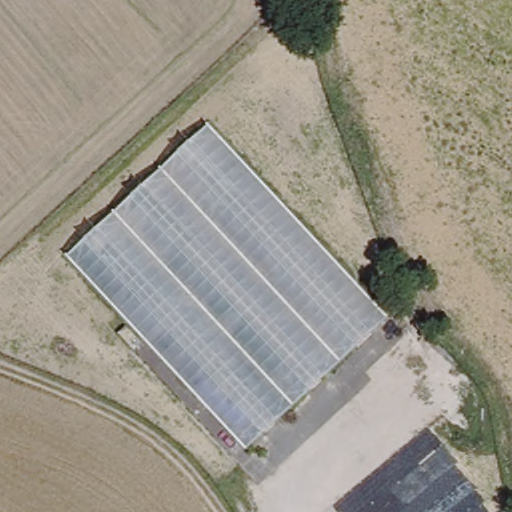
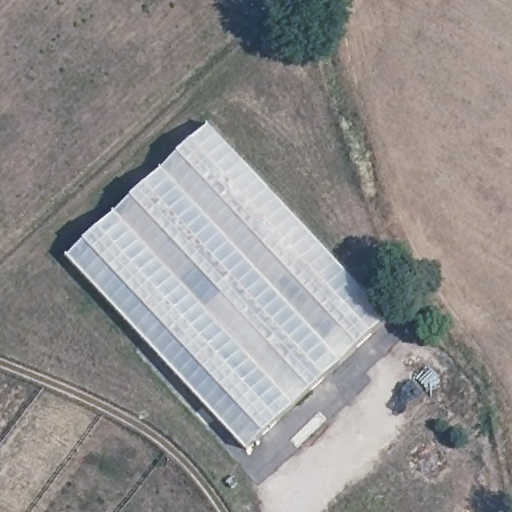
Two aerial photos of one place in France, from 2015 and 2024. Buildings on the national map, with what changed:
unchanged [(207,125),(388,317),(246,448),(66,257),(207,125)]

